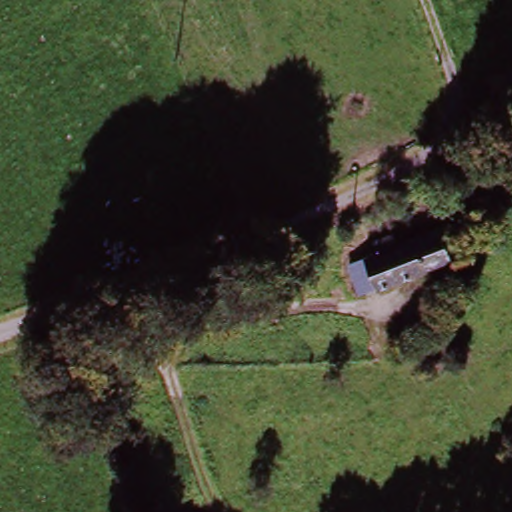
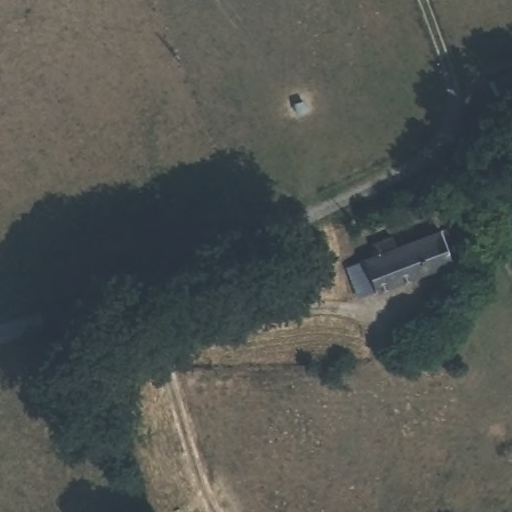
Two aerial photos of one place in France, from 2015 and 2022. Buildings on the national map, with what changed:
unchanged [(372,261),(367,249),(396,236),(402,249),(440,233),(454,263),(360,303),(346,272),(372,261)]

